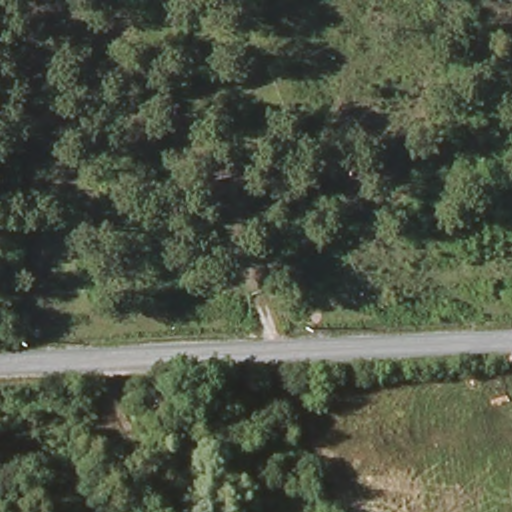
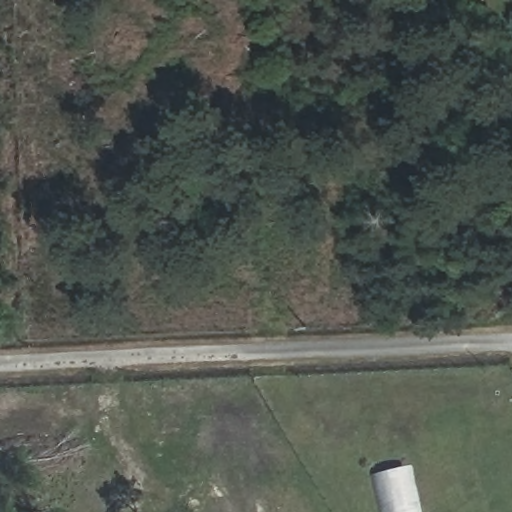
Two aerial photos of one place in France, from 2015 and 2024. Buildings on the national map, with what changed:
new [(372,476),(408,468),(418,512),(381,512),(372,476)]

